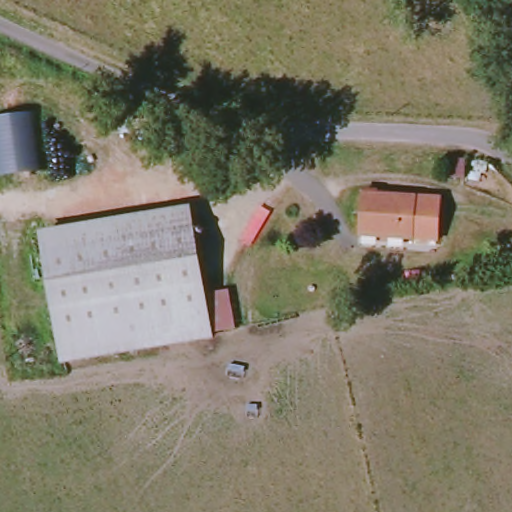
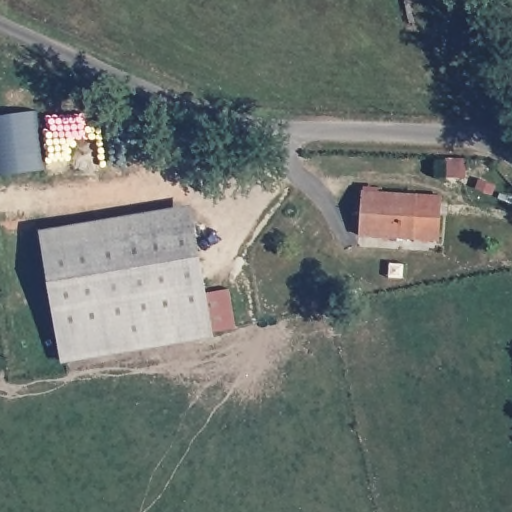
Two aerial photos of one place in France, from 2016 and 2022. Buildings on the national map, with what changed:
unchanged [(46,168),(0,174),(0,113),(35,108),(46,168)]
unchanged [(415,239),(360,236),(362,192),(417,195),(441,198),(438,241),(415,239)]
unchanged [(37,232),(186,205),(190,227),(40,253),(37,232)]
unchanged [(209,337),(57,363),(40,253),(190,227),(201,294),(226,290),(232,329),(208,333),(209,337)]

